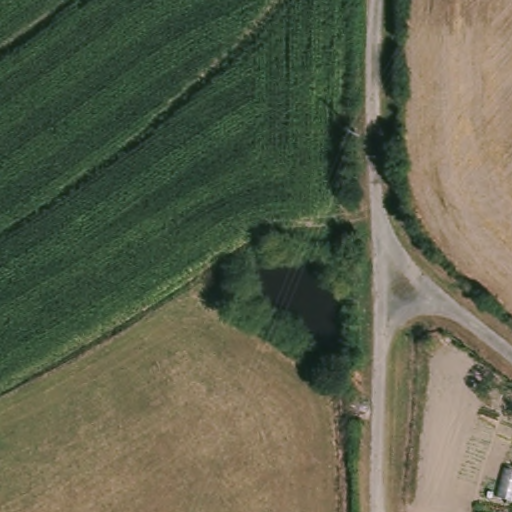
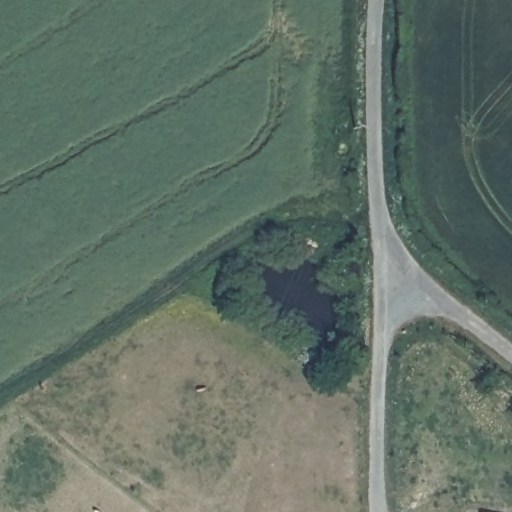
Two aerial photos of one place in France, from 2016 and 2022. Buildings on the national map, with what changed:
[]

